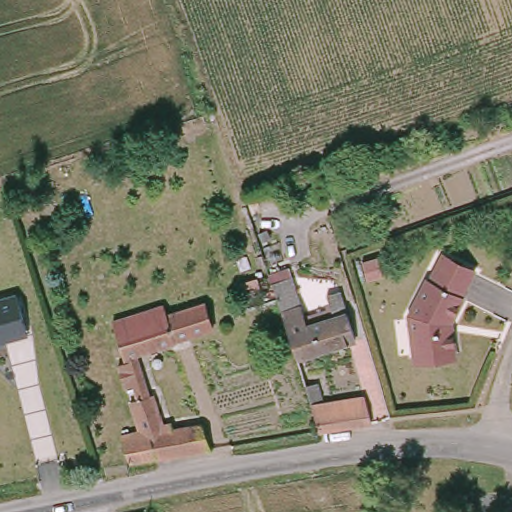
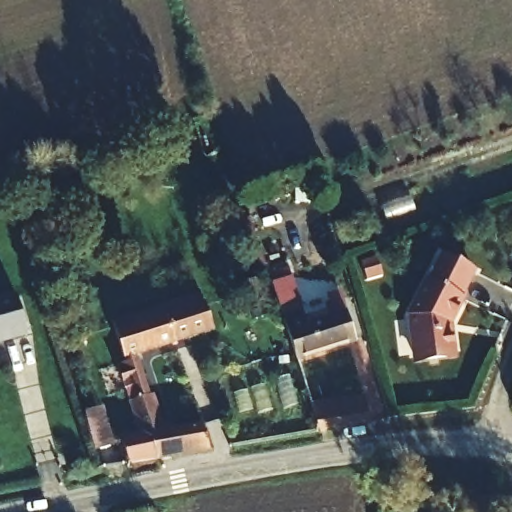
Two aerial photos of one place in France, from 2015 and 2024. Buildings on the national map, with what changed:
unchanged [(409,319),(426,285),(429,286),(442,261),(476,277),(463,303),(467,305),(457,327),(458,359),(417,365),(411,320),(409,319)]
unchanged [(284,328),(268,273),(291,268),(303,302),(299,303),(306,321),(284,328)]
unchanged [(31,335),(0,343),(0,299),(18,295),(31,335)]
unchanged [(329,313),(324,300),(341,295),(358,345),(296,366),(284,328),(329,313)]
unchanged [(138,438),(131,406),(131,405),(136,402),(114,331),(113,328),(131,323),(200,301),(203,300),(215,331),(138,355),(150,398),(155,397),(163,428),(170,426),(172,433),(203,428),(211,455),(196,457),(154,465),(131,469),(123,441),(138,438)]
unchanged [(318,383),(323,405),(366,398),(373,426),(317,436),(302,386),(318,383)]

